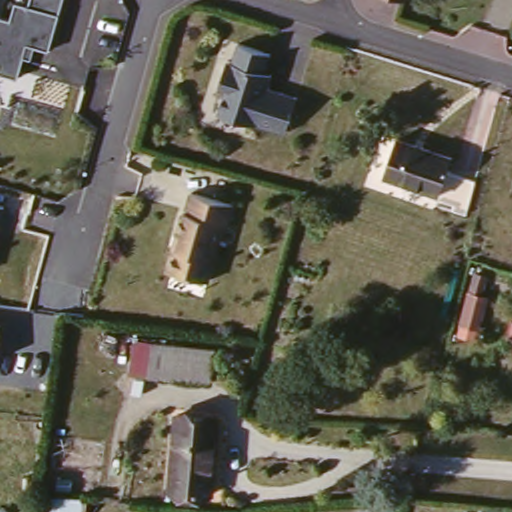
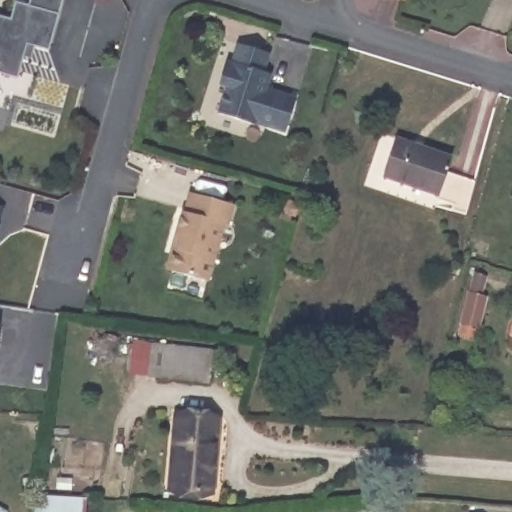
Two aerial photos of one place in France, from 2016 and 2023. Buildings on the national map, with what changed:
unchanged [(14,12),(17,0),(32,0),(64,0),(53,45),(39,41),(36,54),(26,50),(21,72),(0,69),(2,57),(0,56),(0,8),(14,12)]
unchanged [(227,78),(234,53),(239,54),(246,35),(277,46),(271,65),(278,68),(276,75),(274,81),(304,90),(293,124),(263,115),(263,117),(226,105),(234,79),(227,78)]
unchanged [(392,140),(447,154),(437,190),(383,177),(392,140)]
unchanged [(178,262),(181,249),(187,246),(191,230),(186,229),(191,208),(193,209),(198,189),(241,199),(234,219),(232,219),(218,276),(182,268),(178,262)]
unchanged [(5,206),(0,227),(0,205),(5,206)]
unchanged [(475,289),(493,293),(485,324),(467,320),(475,289)]
unchanged [(148,339),(205,348),(199,379),(143,369),(148,339)]
unchanged [(175,413),(222,417),(214,488),(168,483),(175,413)]

